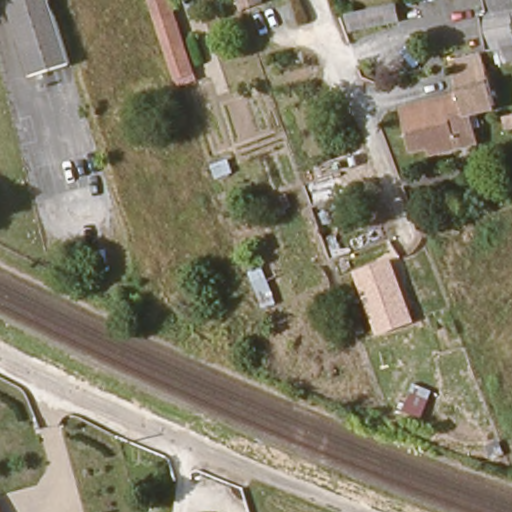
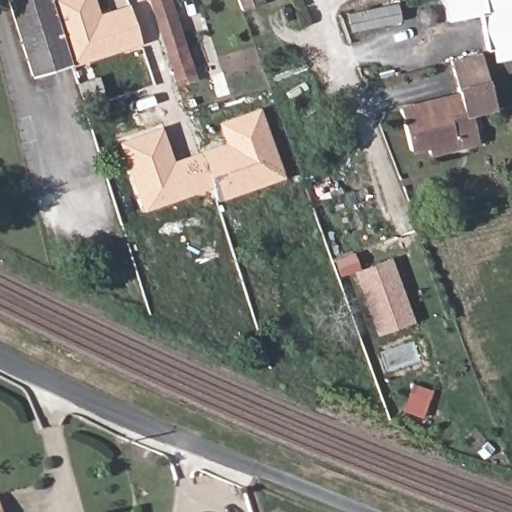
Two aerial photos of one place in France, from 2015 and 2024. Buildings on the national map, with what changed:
unchanged [(71,64),(32,75),(9,0),(51,0),(71,64)]
new [(71,67),(71,64),(51,0),(95,0),(99,13),(128,2),(140,43),(71,67)]
unchanged [(193,69),(176,74),(151,0),(170,0),(193,69)]
unchanged [(263,3),(242,10),(239,0),(262,0),(263,3)]
unchanged [(479,0),(512,0),(512,55),(502,58),(496,44),(484,47),(479,0)]
unchanged [(394,6),(396,24),(353,32),(352,12),(394,6)]
unchanged [(463,144),(434,152),(434,147),(415,150),(404,110),(464,94),(457,71),(454,60),(486,51),(489,62),(500,102),(475,110),(483,141),(463,144)]
new [(215,202),(210,187),(141,212),(116,141),(160,127),(172,159),(224,142),(216,122),(258,107),(283,177),(215,202)]
unchanged [(413,321),(376,336),(353,272),(390,257),(413,321)]
new [(414,381),(432,389),(429,398),(422,416),(403,409),(410,390),(414,381)]

